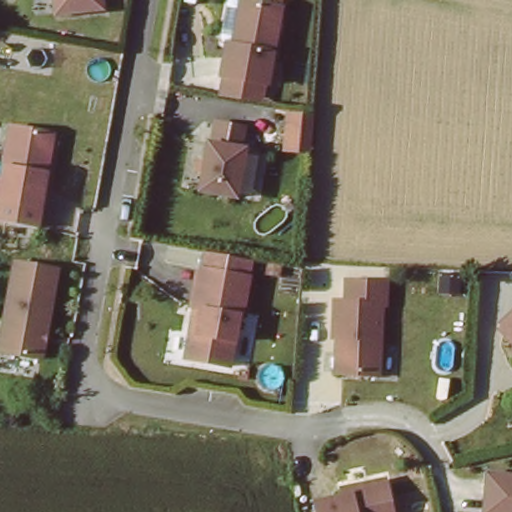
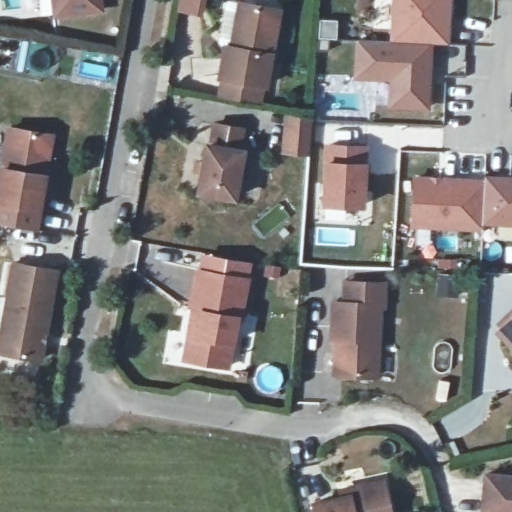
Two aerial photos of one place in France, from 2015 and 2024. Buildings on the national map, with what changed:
unchanged [(53,16),(51,0),(97,0),(99,10),(53,16)]
new [(201,0),(199,14),(181,11),(182,0),(201,0)]
new [(432,43),(390,41),(391,0),(452,0),(451,45),(432,43)]
unchanged [(219,79),(225,45),(234,47),(242,4),(263,8),(285,12),(283,21),(271,88),(219,79)]
new [(429,108),(388,107),(389,81),(354,79),(355,39),(432,43),(429,108)]
unchanged [(311,119),(310,138),(309,155),(281,149),(288,114),(311,119)]
unchanged [(243,129),(240,150),(243,150),(235,197),(199,191),(206,145),(209,145),(213,124),(243,129)]
unchanged [(51,136),(45,176),(39,211),(0,205),(0,182),(9,130),(46,135),(51,136)]
new [(363,206),(325,205),(327,147),(365,149),(363,206)]
new [(481,224),(483,181),(484,176),(512,178),(512,226),(481,224)]
new [(481,228),(413,224),(416,179),(483,181),(481,224),(481,228)]
unchanged [(198,278),(201,261),(226,265),(248,269),(245,287),(238,326),(235,326),(227,375),(182,367),(187,341),(190,317),(198,278)]
unchanged [(54,270),(38,359),(0,353),(0,329),(12,263),(54,270)]
unchanged [(338,341),(335,341),(336,305),(347,305),(348,283),(387,285),(386,308),(382,308),(380,378),(344,377),(337,376),(338,341)]
unchanged [(512,320),(512,347),(499,333),(512,320)]
unchanged [(485,477),(512,479),(512,512),(482,512),(485,477)]
unchanged [(337,489),(343,487),(380,479),(387,512),(311,512),(309,502),(338,495),(337,489)]

